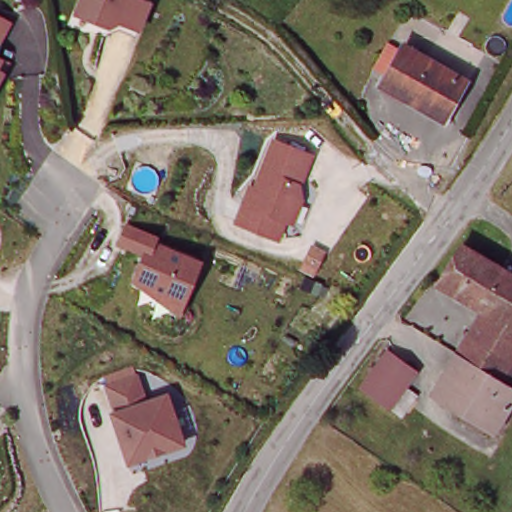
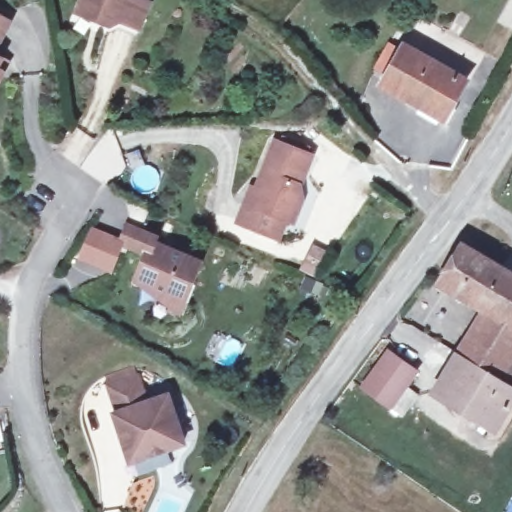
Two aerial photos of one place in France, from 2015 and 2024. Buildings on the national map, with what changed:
unchanged [(102,33),(106,22),(75,11),(79,0),(146,0),(137,26),(134,32),(116,26),(102,33)]
unchanged [(7,21),(0,34),(0,17),(7,21)]
unchanged [(459,85),(440,120),(384,91),(403,56),(459,85)]
unchanged [(6,61),(1,71),(0,73),(0,58),(6,61)]
unchanged [(240,210),(246,195),(250,196),(256,182),(261,185),(263,178),(258,176),(269,147),(305,162),(294,192),(296,206),(285,214),(280,226),(240,210)]
unchanged [(204,258),(182,312),(133,281),(143,255),(118,241),(129,221),(204,258)]
new [(112,272),(77,258),(88,231),(123,245),(112,272)]
unchanged [(434,283),(459,249),(512,279),(512,330),(486,314),(434,283)]
unchanged [(500,385),(460,360),(486,314),(512,330),(512,364),(500,385)]
unchanged [(400,416),(385,406),(362,390),(386,355),(410,368),(407,373),(399,385),(414,396),(400,416)]
unchanged [(460,360),(500,385),(512,392),(512,406),(503,421),(496,433),(437,397),(443,387),(460,360)]
unchanged [(147,398),(168,393),(184,443),(130,460),(112,412),(103,383),(139,372),(147,398)]

